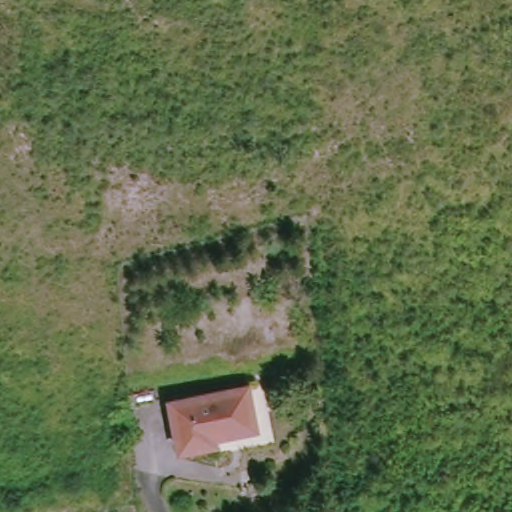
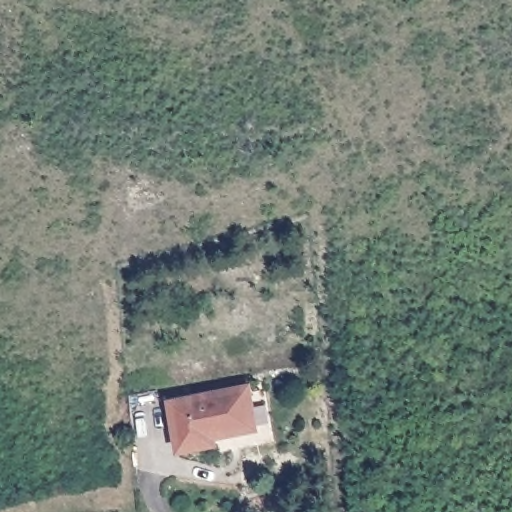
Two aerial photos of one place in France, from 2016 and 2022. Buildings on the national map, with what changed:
unchanged [(247,392),(251,435),(210,439),(210,447),(175,451),(169,400),(247,392)]

